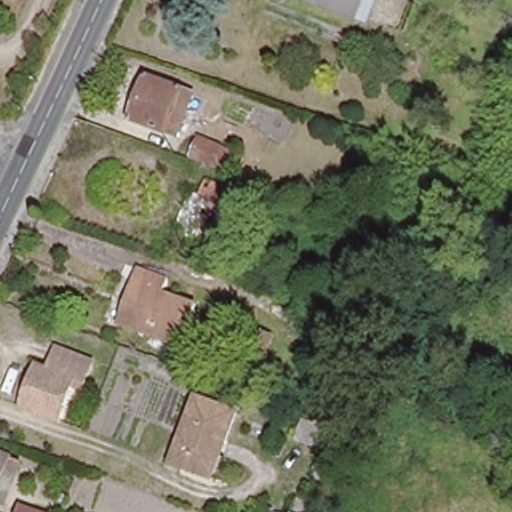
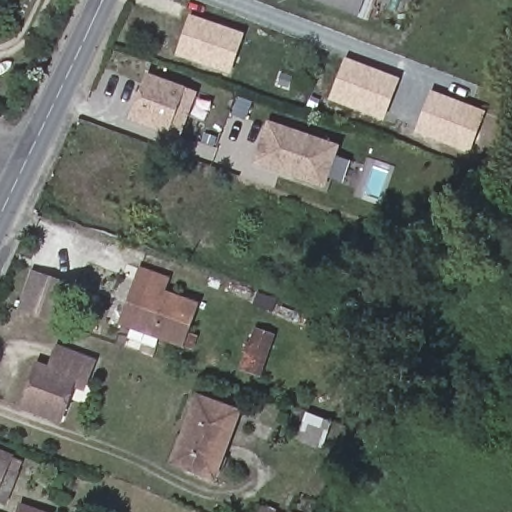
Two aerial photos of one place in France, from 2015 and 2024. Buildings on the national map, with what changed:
unchanged [(318,0),(366,0),(361,14),(318,0)]
new [(231,75),(175,56),(189,15),(245,35),(231,75)]
new [(386,122),(329,101),(345,57),(401,79),(386,122)]
unchanged [(139,121),(154,80),(188,92),(200,97),(190,122),(183,139),(139,121)]
new [(430,90),(486,112),(470,154),(415,133),(430,90)]
new [(337,144),(322,188),(252,164),(268,120),(337,144)]
demolished [(204,161),(210,142),(250,157),(244,175),(227,169),(204,161)]
demolished [(213,181),(242,191),(225,237),(196,228),(213,181)]
new [(56,323),(18,311),(32,270),(69,283),(56,323)]
unchanged [(169,281),(165,292),(198,303),(184,344),(121,325),(137,271),(169,281)]
unchanged [(249,363),(263,326),(280,331),(289,334),(282,353),(274,351),(268,370),(249,363)]
unchanged [(54,427),(16,412),(32,371),(45,376),(54,352),(87,365),(78,388),(69,386),(54,427)]
unchanged [(198,397),(240,411),(217,476),(176,462),(198,397)]
unchanged [(12,467),(0,493),(0,447),(17,454),(12,467)]
unchanged [(25,503),(52,512),(22,512),(25,503)]

